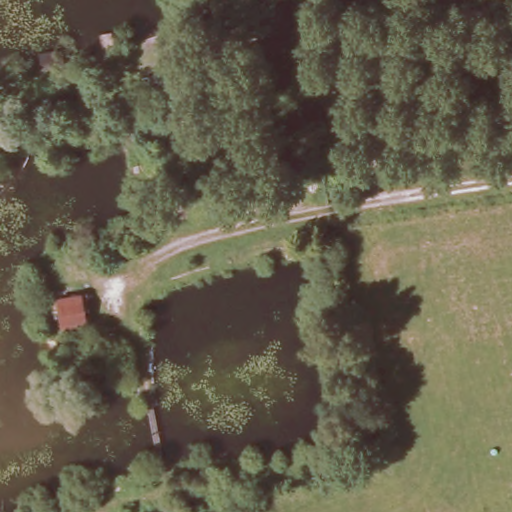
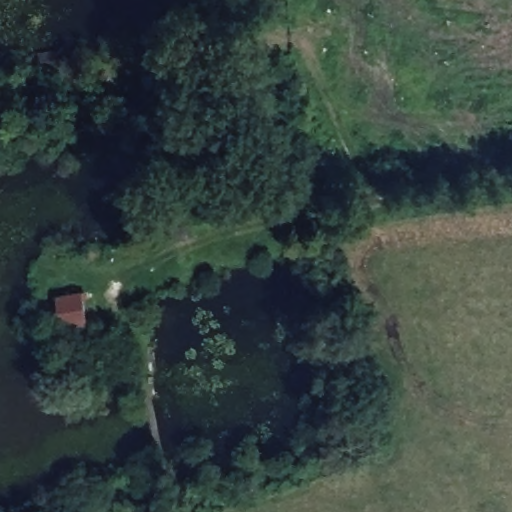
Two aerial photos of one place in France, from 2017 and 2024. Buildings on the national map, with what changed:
unchanged [(139,267),(98,277),(90,249),(133,239),(139,267)]
unchanged [(92,319),(65,326),(56,289),(83,283),(92,319)]

